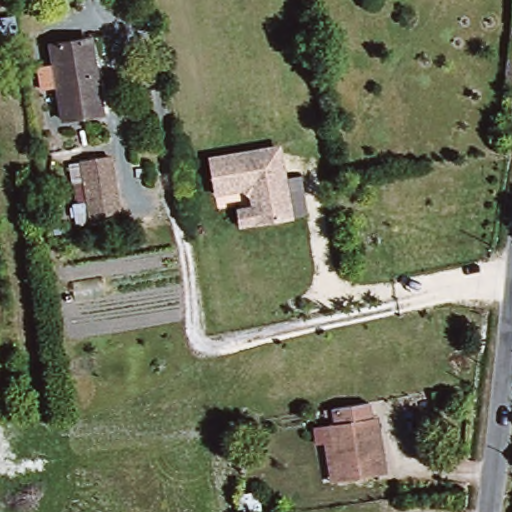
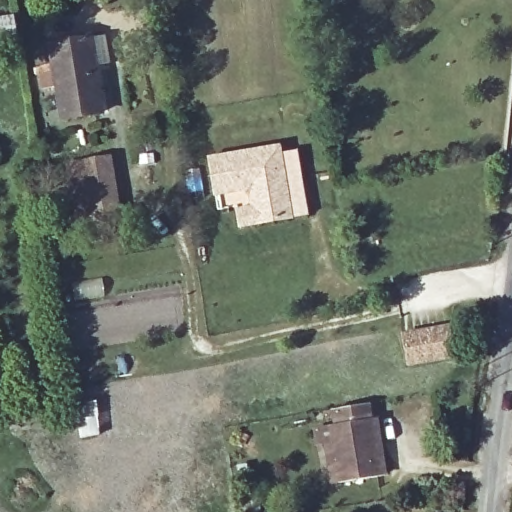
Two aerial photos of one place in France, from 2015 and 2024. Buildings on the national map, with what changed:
unchanged [(20,30),(0,32),(0,6),(16,4),(20,30)]
unchanged [(54,45),(96,40),(107,109),(65,114),(54,45)]
unchanged [(86,208),(77,146),(107,143),(116,203),(119,225),(89,229),(86,208)]
unchanged [(237,214),(251,211),(249,199),(240,194),(212,198),(206,161),(264,152),(281,149),(287,185),(293,222),(254,227),(239,229),(237,214)]
demolished [(479,322),(457,327),(452,299),(473,295),(479,322)]
new [(400,334),(450,324),(456,358),(407,367),(400,334)]
unchanged [(338,477),(328,415),(335,414),(332,405),(365,399),(377,471),(338,477)]

